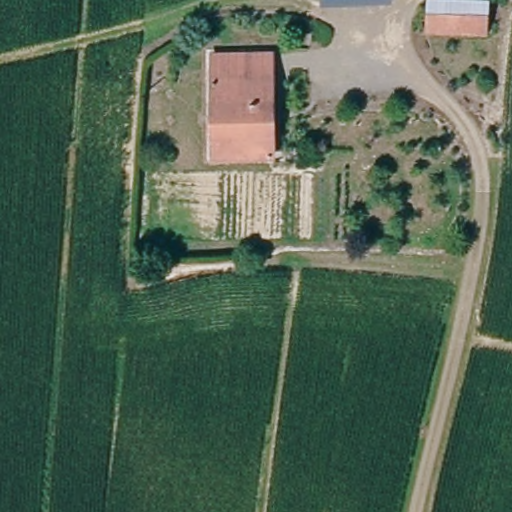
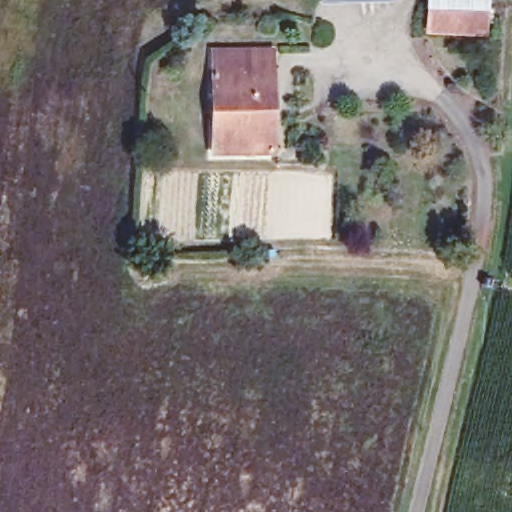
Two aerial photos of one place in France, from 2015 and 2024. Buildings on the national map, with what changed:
unchanged [(427,23),(427,20),(429,0),(445,0),(469,1),(491,3),(489,25),(468,24),(427,23)]
unchanged [(275,45),(278,154),(211,156),(207,47),(275,45)]

